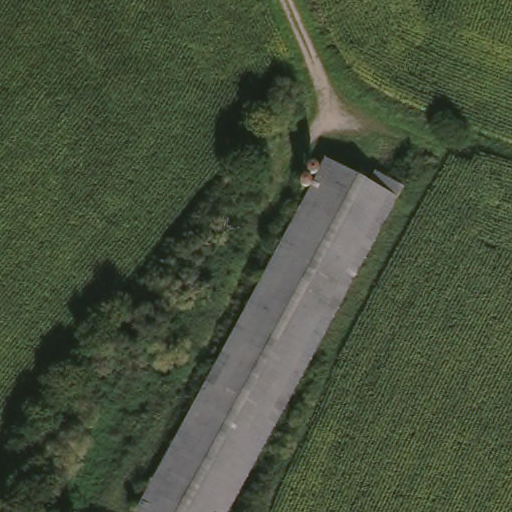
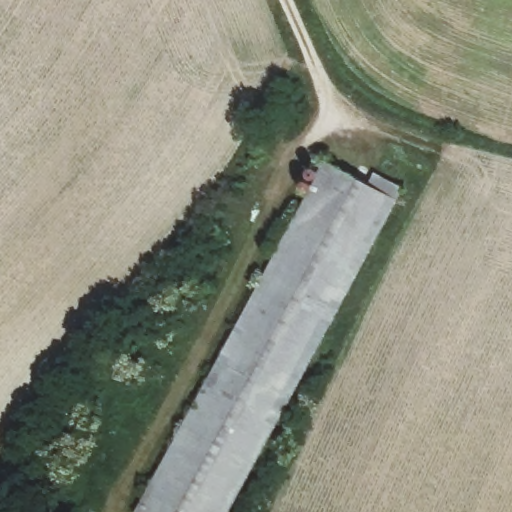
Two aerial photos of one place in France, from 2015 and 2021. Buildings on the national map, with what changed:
unchanged [(227,512),(135,512),(321,164),(394,203),(227,512)]

